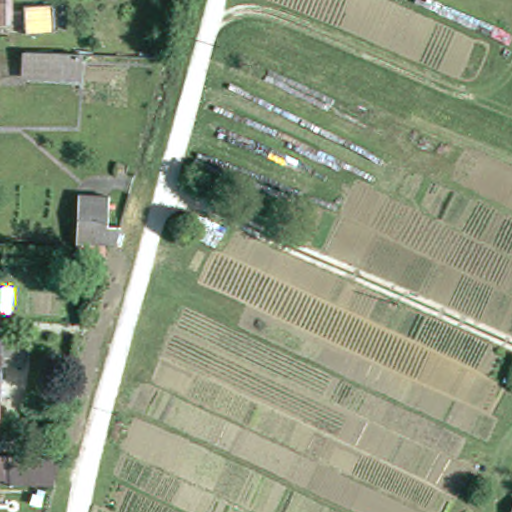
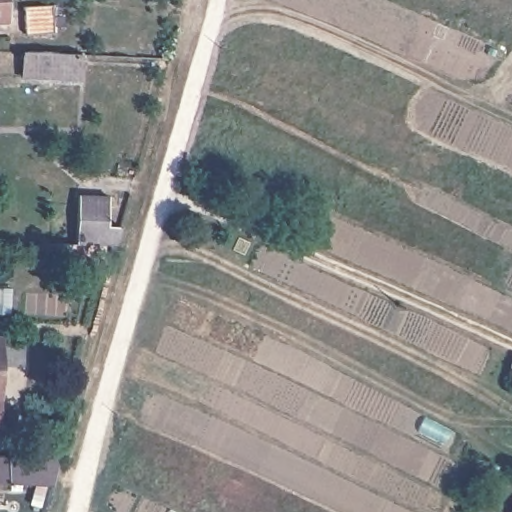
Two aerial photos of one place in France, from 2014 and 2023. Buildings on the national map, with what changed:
unchanged [(0,20),(0,0),(1,0),(2,20),(0,20)]
unchanged [(66,26),(53,27),(53,33),(25,34),(24,6),(53,5),(53,6),(60,6),(61,17),(65,17),(66,26)]
unchanged [(31,82),(31,57),(84,60),(84,82),(31,82)]
unchanged [(83,244),(83,197),(113,198),(113,225),(125,227),(119,246),(83,244)]
unchanged [(9,426),(1,426),(0,426),(0,343),(2,343),(1,346),(27,347),(26,368),(2,368),(1,410),(9,410),(9,426)]
unchanged [(20,463),(63,463),(56,487),(0,487),(0,463),(20,463)]

